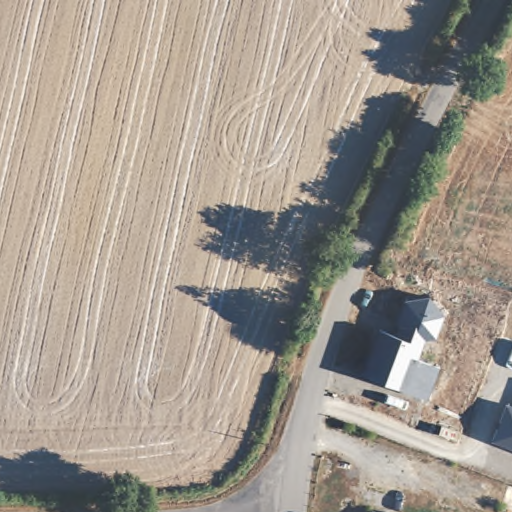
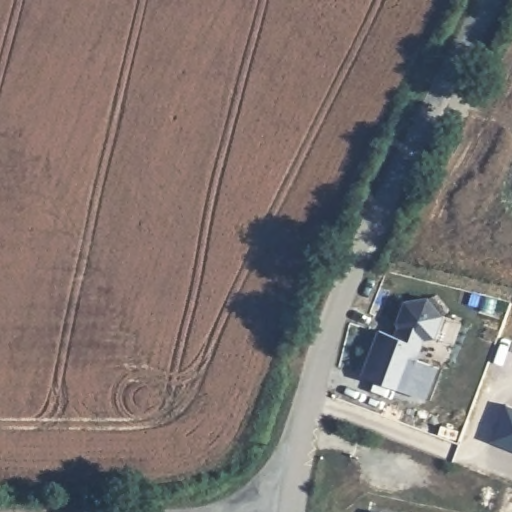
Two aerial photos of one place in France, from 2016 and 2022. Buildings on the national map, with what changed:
unchanged [(399,337),(402,330),(397,322),(404,300),(429,297),(443,316),(436,336),(426,338),(419,359),(438,366),(427,397),(362,376),(377,330),(399,337)]
unchanged [(512,448),(493,440),(505,408),(512,411),(512,448)]
unchanged [(369,510),(381,512),(368,512),(369,510)]

